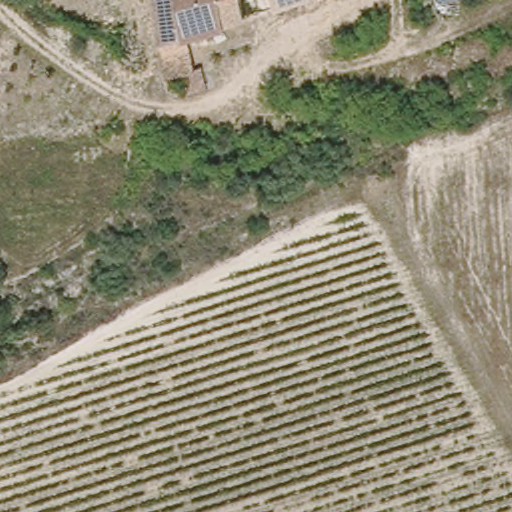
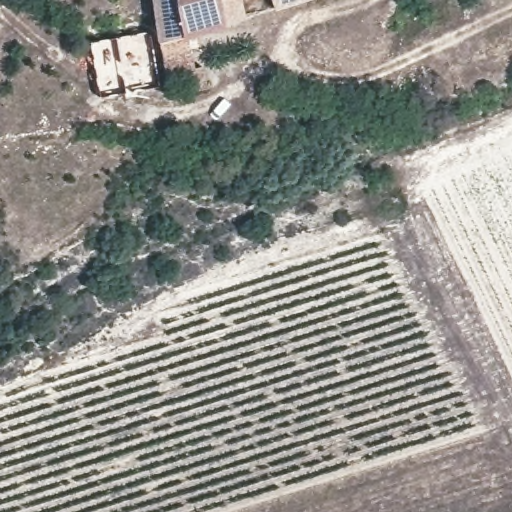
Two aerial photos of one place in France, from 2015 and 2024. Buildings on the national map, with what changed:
unchanged [(191,36),(200,64),(207,64),(212,81),(192,86),(187,73),(173,76),(165,38),(159,0),(244,0),(247,19),(191,36)]
unchanged [(272,0),(308,0),(275,10),(272,0)]
new [(150,32),(162,88),(101,98),(90,44),(150,32)]

